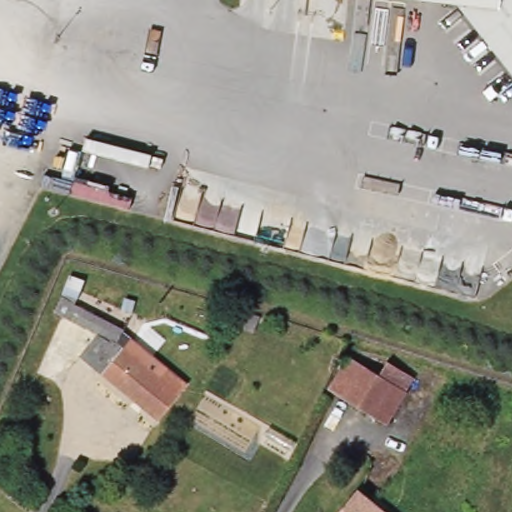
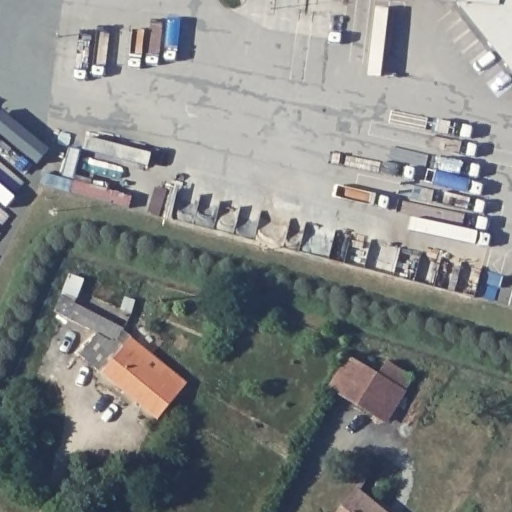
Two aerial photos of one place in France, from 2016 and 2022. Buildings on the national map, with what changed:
unchanged [(465,4),(422,0),(512,0),(512,69),(465,4)]
unchanged [(188,384),(158,419),(80,355),(98,334),(55,311),(63,293),(73,298),(71,302),(125,329),(188,384)]
unchanged [(386,422),(330,389),(349,358),(378,376),(387,361),(414,377),(386,422)]
unchanged [(352,489),(381,512),(333,512),(352,489)]

